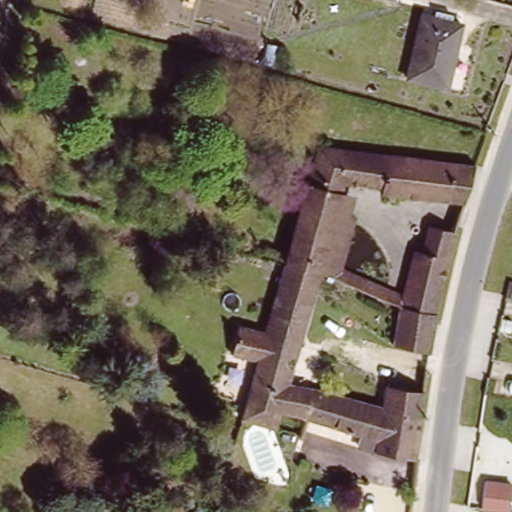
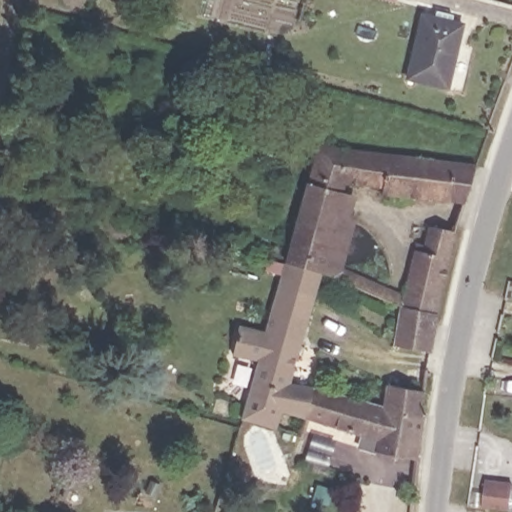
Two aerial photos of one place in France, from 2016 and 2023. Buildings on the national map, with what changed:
unchanged [(424,10),(465,21),(447,82),(409,73),(424,10)]
unchanged [(472,162),(462,203),(394,194),(393,202),(384,201),(385,192),(378,191),(379,185),(332,180),(330,189),(354,196),(333,277),(320,274),(285,263),(320,143),(472,162)]
unchanged [(417,241),(425,243),(430,225),(455,229),(432,315),(399,308),(417,241)]
unchanged [(286,385),(309,390),(303,414),(278,409),(273,428),(238,418),(255,360),(230,352),(237,324),(265,330),(285,263),(320,274),(286,385)]
unchanged [(432,315),(435,316),(429,347),(391,338),(399,308),(432,315)]
unchanged [(386,380),(421,387),(416,410),(420,415),(411,457),(374,451),(377,430),(303,414),(309,390),(381,403),(386,380)]
unchanged [(478,508),(480,488),(508,492),(506,512),(478,508)]

